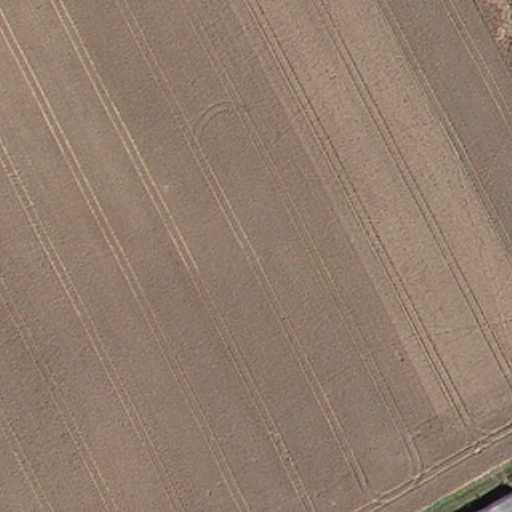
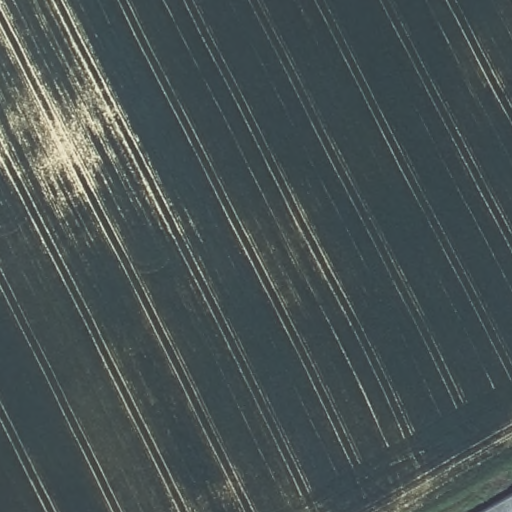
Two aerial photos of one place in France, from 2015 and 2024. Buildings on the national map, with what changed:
unchanged [(512,512),(495,512),(512,502),(512,512)]

